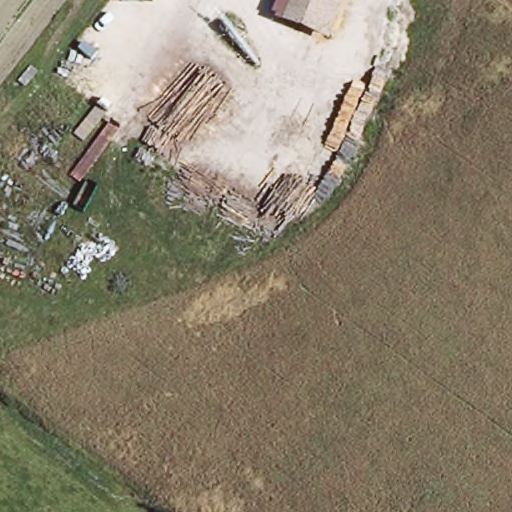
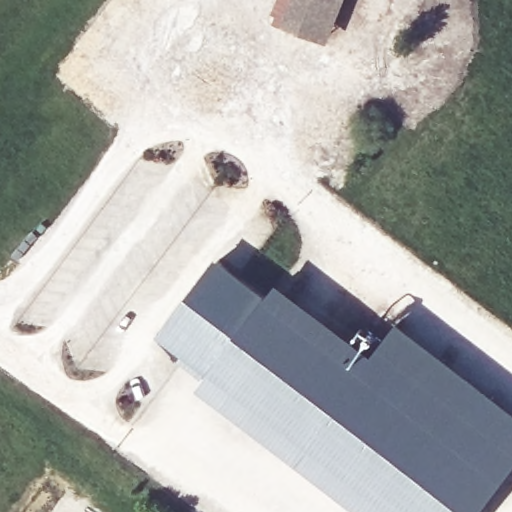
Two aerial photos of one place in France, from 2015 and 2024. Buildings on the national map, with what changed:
unchanged [(280,0),(348,0),(332,42),(273,19),(280,0)]
new [(361,382),(480,475),(451,512),(376,512),(187,364),(244,291),(361,382)]
new [(397,335),(512,425),(512,433),(480,475),(361,382),(397,335)]

